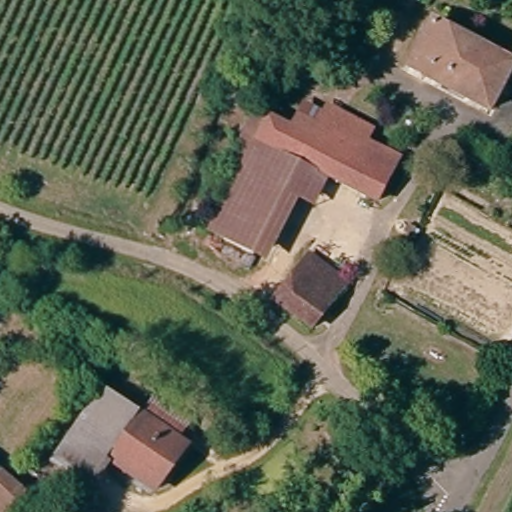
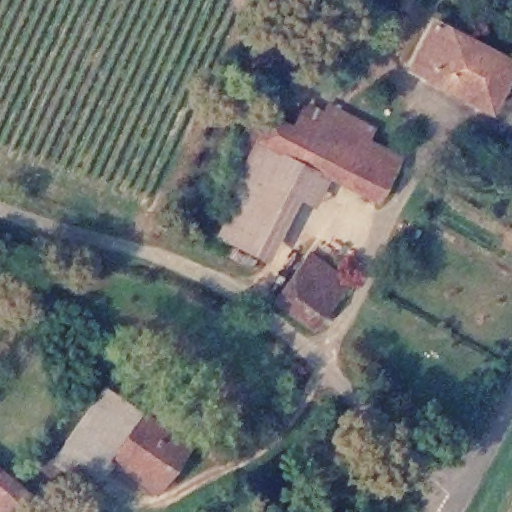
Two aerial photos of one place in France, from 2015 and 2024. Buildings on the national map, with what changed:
unchanged [(483,104),(416,71),(437,24),(505,58),(512,61),(512,81),(497,111),(483,104)]
unchanged [(300,197),(268,263),(213,235),(272,117),(294,129),(306,105),(325,115),(330,106),(374,128),(368,142),(400,158),(378,203),(328,177),(315,205),(300,197)]
unchanged [(315,252),(337,269),(352,282),(318,329),(280,299),(308,261),(315,252)]
unchanged [(113,464),(96,489),(57,458),(111,384),(149,415),(113,464)]
unchanged [(157,497),(113,464),(149,415),(192,447),(157,497)]
unchanged [(10,498),(19,504),(14,512),(0,512),(0,491),(10,498)]

